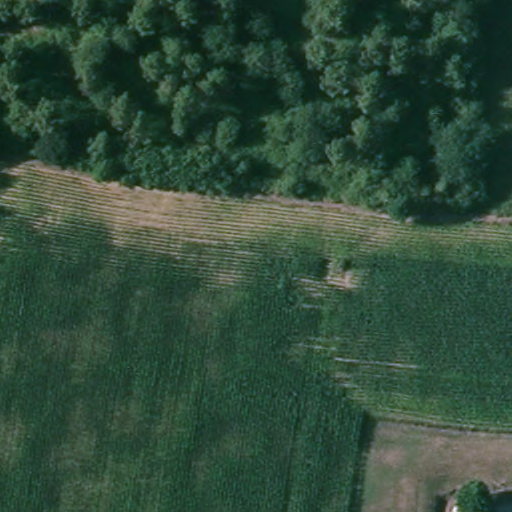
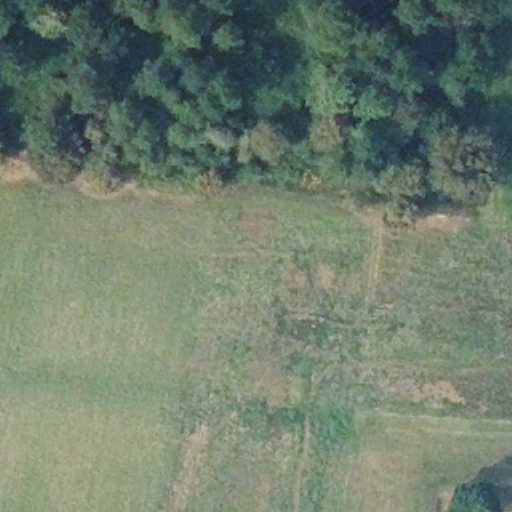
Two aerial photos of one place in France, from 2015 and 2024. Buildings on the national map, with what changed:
[]

